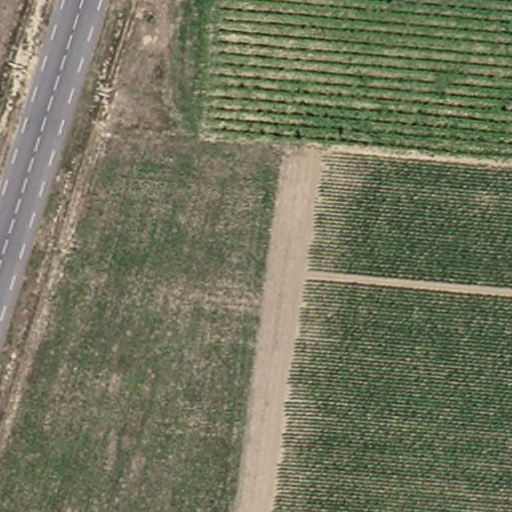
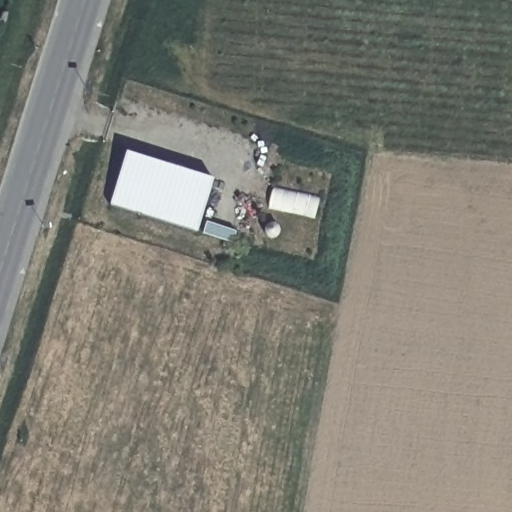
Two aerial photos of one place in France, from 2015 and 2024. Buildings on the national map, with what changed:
new [(130,147),(217,174),(200,227),(113,201),(130,147)]

